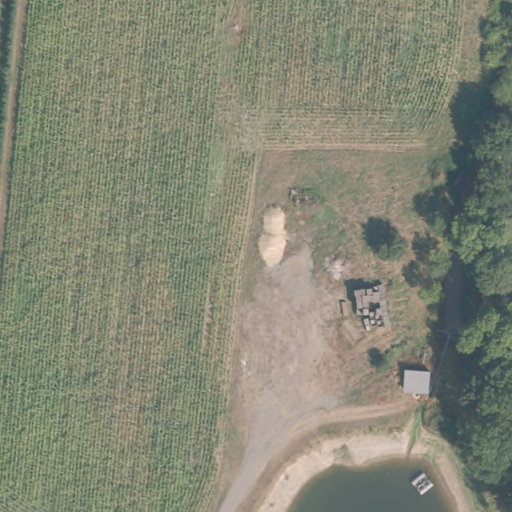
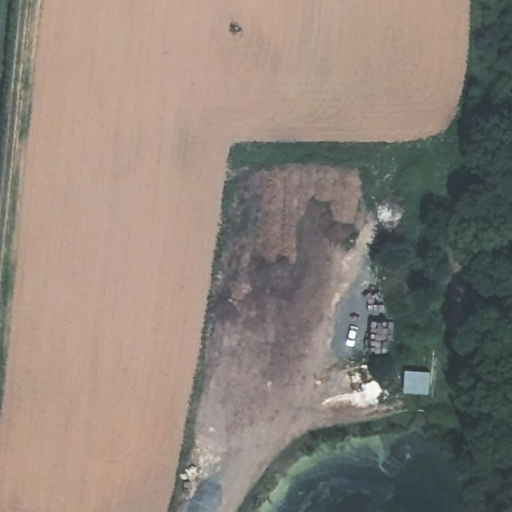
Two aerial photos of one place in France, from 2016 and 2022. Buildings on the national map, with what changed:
unchanged [(402,376),(431,378),(429,398),(403,395),(402,376)]

